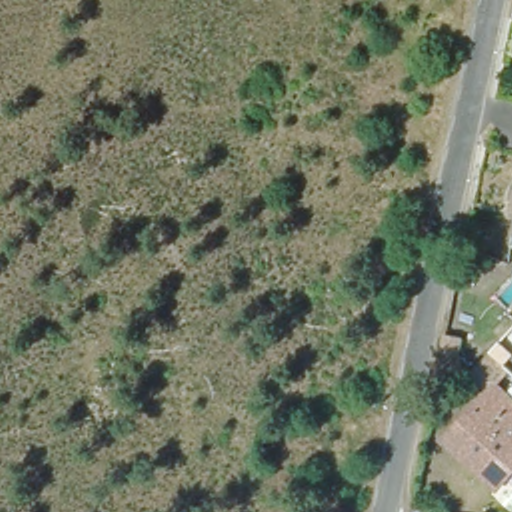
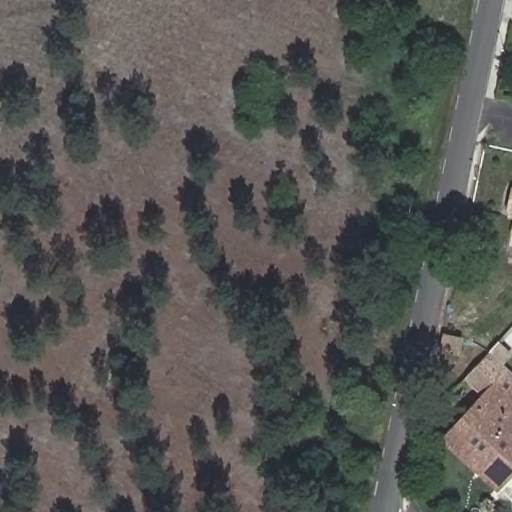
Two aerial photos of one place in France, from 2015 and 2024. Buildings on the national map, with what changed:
unchanged [(506,213),(504,213),(508,192),(512,192),(512,237),(508,236),(511,220),(504,219),(506,213)]
unchanged [(443,331),(457,334),(453,352),(439,349),(443,331)]
unchanged [(490,351),(508,366),(485,391),(467,376),(490,351)]
unchanged [(454,452),(442,441),(450,433),(472,408),(494,384),(505,394),(512,401),(512,468),(501,480),(494,489),(473,469),(454,452)]

